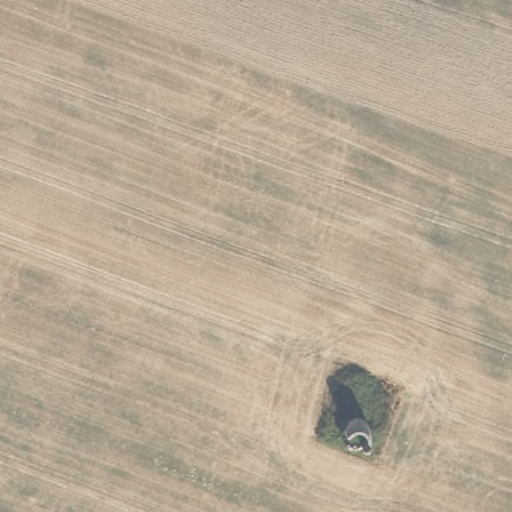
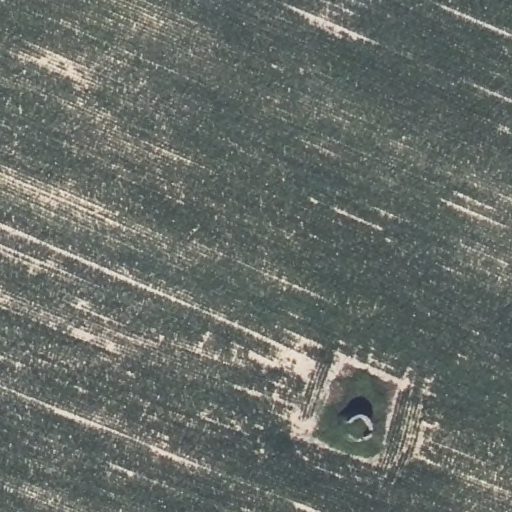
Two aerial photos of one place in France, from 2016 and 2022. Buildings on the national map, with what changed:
[]

